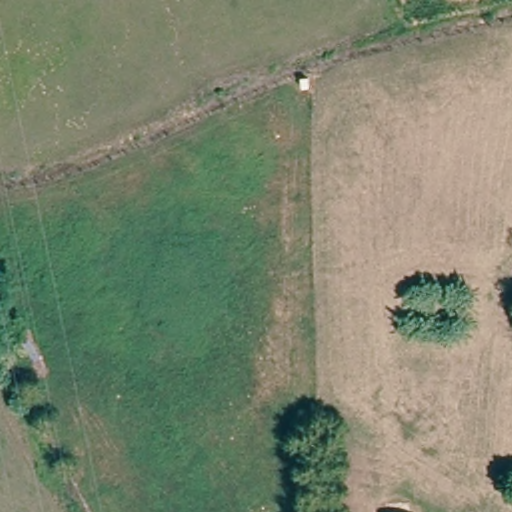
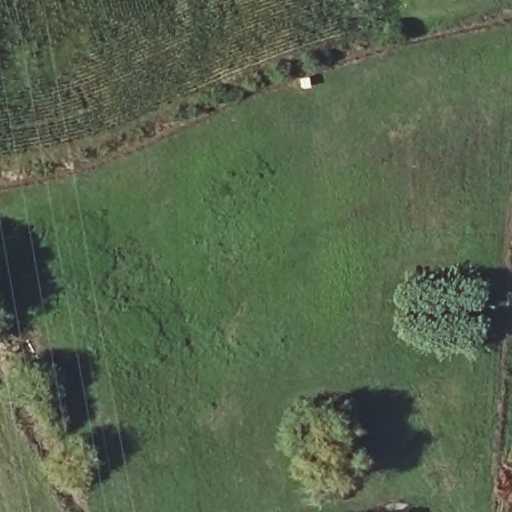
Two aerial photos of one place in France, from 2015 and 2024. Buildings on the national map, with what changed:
[]

